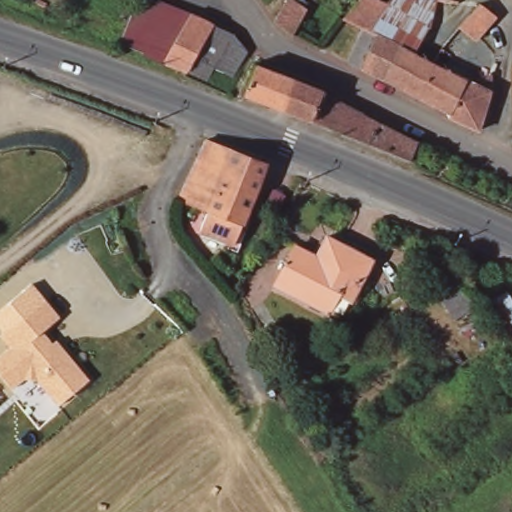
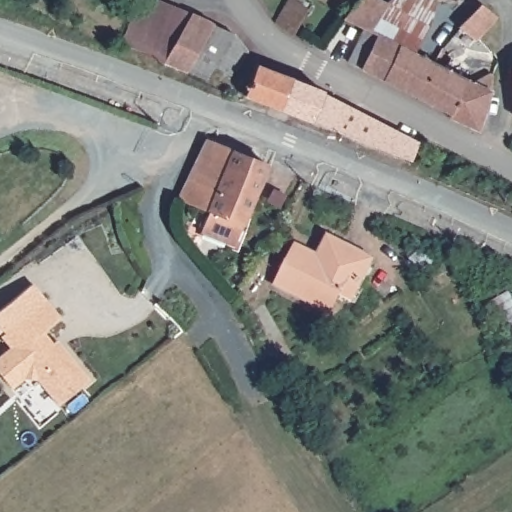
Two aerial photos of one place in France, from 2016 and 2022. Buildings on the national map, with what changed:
unchanged [(165,63),(116,46),(140,0),(166,0),(192,11),(165,63)]
unchanged [(296,32),(282,25),(278,20),(289,0),(301,0),(310,5),(296,32)]
unchanged [(358,66),(345,59),(360,24),(357,22),(340,15),(354,0),(385,0),(388,1),(426,20),(415,52),(473,82),(449,113),(358,66)]
unchanged [(434,4),(431,24),(426,20),(388,1),(388,0),(447,0),(445,7),(434,4)]
unchanged [(497,11),(479,40),(461,29),(480,0),(497,11)]
unchanged [(218,23),(191,73),(165,63),(192,11),(218,23)]
unchanged [(296,80),(284,110),(247,96),(260,66),(296,80)]
unchanged [(478,78),(482,82),(497,74),(475,130),(446,116),(449,113),(473,82),(478,78)]
unchanged [(367,106),(365,112),(383,121),(372,145),(284,110),(296,80),(367,106)]
unchanged [(422,140),(412,161),(372,145),(383,121),(422,140)]
unchanged [(270,165),(244,231),(238,246),(204,234),(211,214),(202,210),(183,202),(183,201),(208,142),(270,165)]
unchanged [(344,295),(334,316),(282,291),(300,251),(323,262),(333,240),(377,261),(366,285),(359,301),(344,295)]
unchanged [(474,352),(450,320),(454,316),(432,288),(454,274),(477,303),(471,310),(492,341),(474,352)]
unchanged [(510,291),(512,295),(512,347),(488,305),(510,291)]
unchanged [(59,313),(48,326),(89,377),(57,404),(39,380),(37,379),(24,379),(13,386),(0,371),(0,353),(9,346),(0,335),(0,334),(44,296),(59,313)]

